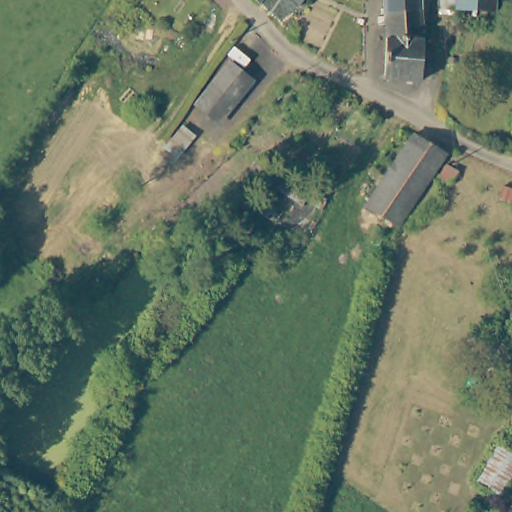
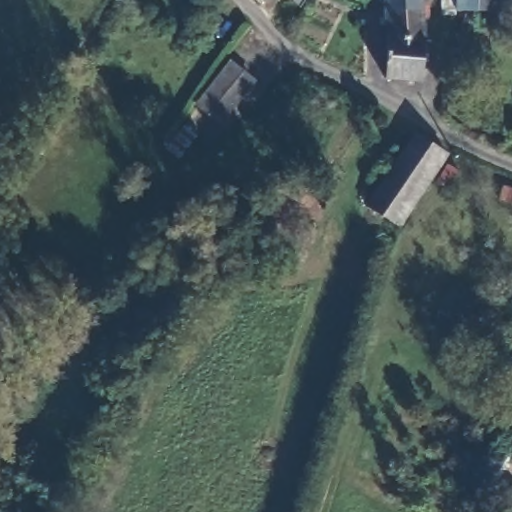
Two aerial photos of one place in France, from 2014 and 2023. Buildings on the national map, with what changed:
unchanged [(256,0),(271,0),(264,7),(256,0)]
unchanged [(422,83),(385,80),(389,55),(390,29),(389,0),(423,0),(426,34),(422,83)]
unchanged [(457,4),(457,0),(495,0),(494,11),(457,4)]
unchanged [(200,104),(232,65),(249,78),(217,118),(200,104)]
unchanged [(178,157),(166,148),(184,125),(196,136),(178,157)]
unchanged [(404,226),(372,206),(419,133),(452,153),(404,226)]
unchanged [(270,179),(253,167),(260,157),(277,169),(270,179)]
unchanged [(452,164),(464,171),(456,185),(451,182),(449,186),(443,182),(445,179),(452,164)]
unchanged [(269,184),(276,172),(305,189),(298,201),(269,184)]
unchanged [(503,186),(512,189),(512,203),(498,199),(503,186)]
unchanged [(512,362),(481,355),(486,336),(512,342),(512,360),(512,362)]
unchanged [(506,435),(512,439),(512,476),(495,503),(473,490),(506,435)]

